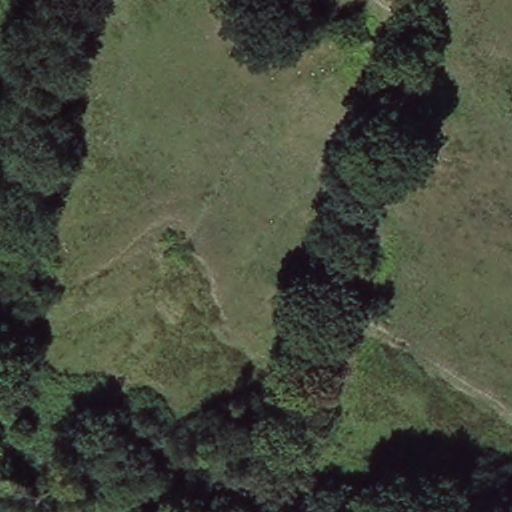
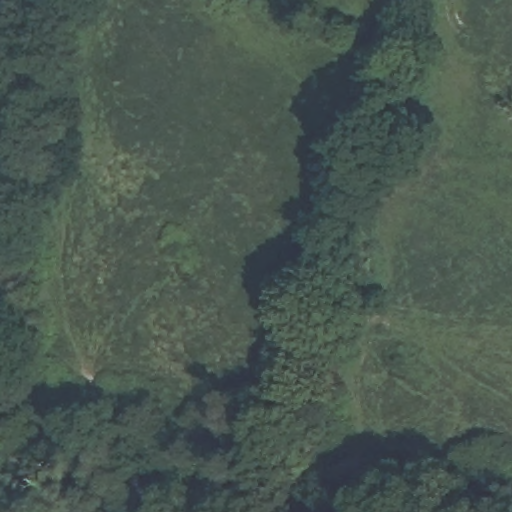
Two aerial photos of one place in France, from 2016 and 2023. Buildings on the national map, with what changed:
[]

